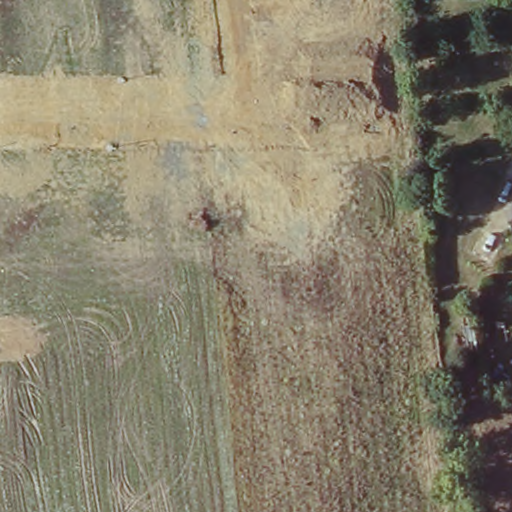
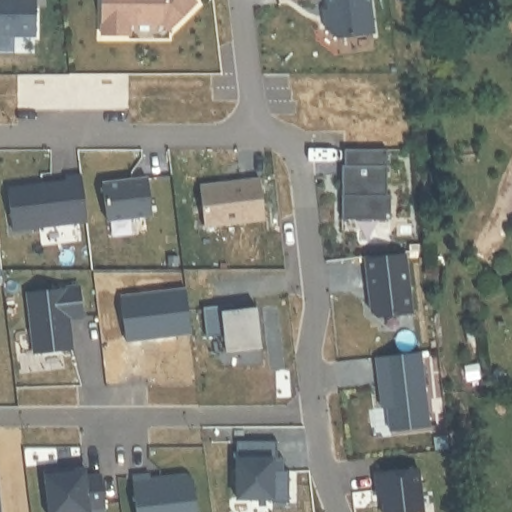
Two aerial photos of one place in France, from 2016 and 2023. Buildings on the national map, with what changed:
new [(36,0),(36,38),(0,38),(0,0),(36,0)]
new [(171,32),(163,25),(130,25),(130,38),(103,38),(103,0),(194,0),(196,2),(171,32)]
new [(331,0),(372,0),(376,36),(341,40),(330,31),(327,12),(332,11),(331,0)]
new [(345,168),(347,168),(347,152),(390,152),(390,197),(393,197),(393,222),(345,222),(345,168)]
new [(12,230),(9,187),(80,178),(87,223),(12,230)]
new [(259,178),(265,221),(204,228),(200,184),(259,178)]
new [(150,180),(155,215),(110,221),(105,186),(150,180)]
demolished [(509,224),(493,261),(466,249),(452,243),(470,207),(509,224)]
unchanged [(512,221),(512,227),(510,221),(512,221)]
new [(412,313),(373,316),(367,257),(406,253),(412,313)]
new [(83,318),(71,320),(75,350),(33,354),(27,293),(80,285),(83,318)]
new [(205,307),(234,303),(235,309),(255,307),(261,347),(226,352),(223,335),(207,336),(205,307)]
new [(430,426),(388,430),(386,409),(381,410),(376,356),(422,352),(430,426)]
new [(276,457),(284,457),(284,470),(288,470),(288,501),(235,500),(236,440),(276,440),(276,457)]
new [(90,508),(90,512),(50,512),(45,472),(85,468),(86,476),(101,472),(105,508),(90,508)]
new [(425,512),(384,512),(381,493),(376,495),(375,476),(419,469),(425,512)]
new [(133,475),(151,472),(152,477),(184,473),(192,480),(196,512),(137,512),(133,475)]
new [(2,512),(0,512),(0,494),(2,512)]

